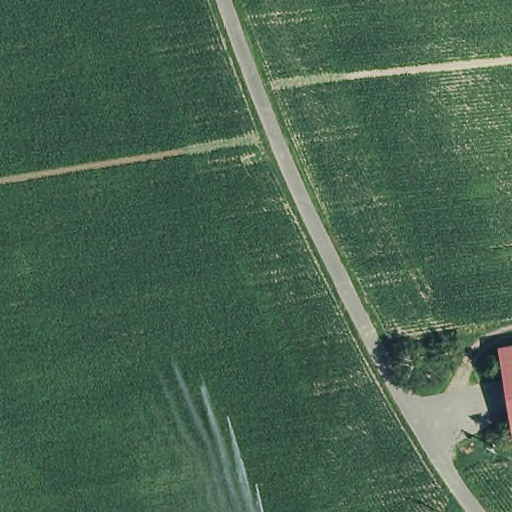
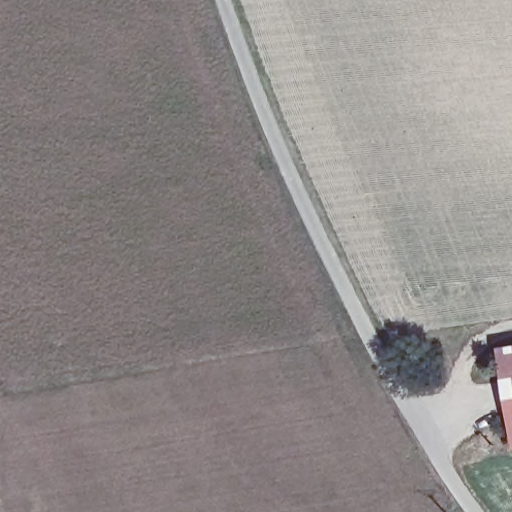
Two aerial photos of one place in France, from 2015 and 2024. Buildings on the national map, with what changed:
unchanged [(512,348),(512,427),(500,350),(512,348)]

